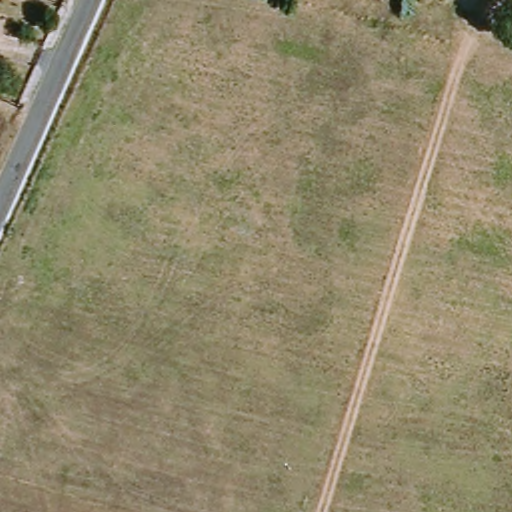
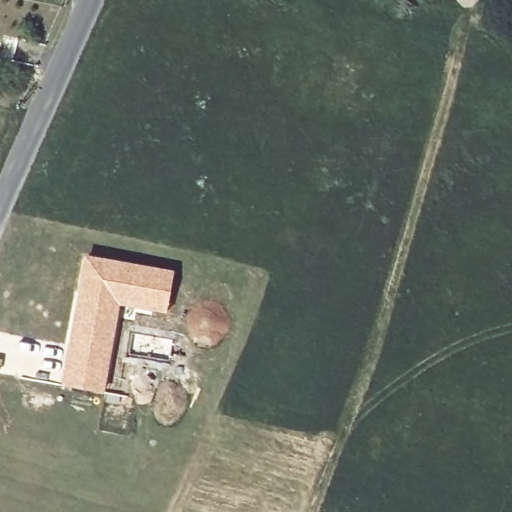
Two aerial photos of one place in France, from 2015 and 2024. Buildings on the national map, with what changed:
new [(85,253),(175,270),(166,313),(120,306),(104,394),(60,385),(85,253)]

